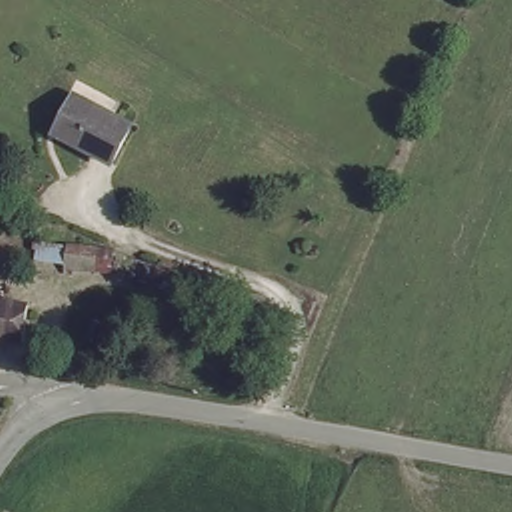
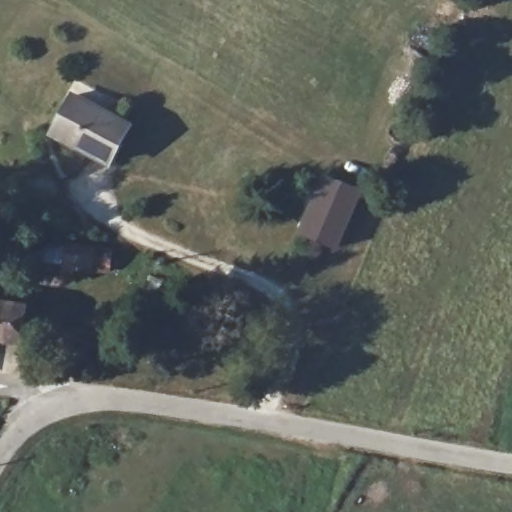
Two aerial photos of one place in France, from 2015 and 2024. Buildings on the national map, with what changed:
unchanged [(114,167),(54,140),(73,99),(132,125),(114,167)]
new [(362,189),(337,249),(296,231),(322,173),(362,189)]
unchanged [(110,276),(60,272),(59,267),(27,265),(27,242),(111,245),(110,276)]
unchanged [(42,313),(33,351),(0,342),(0,300),(42,313)]

